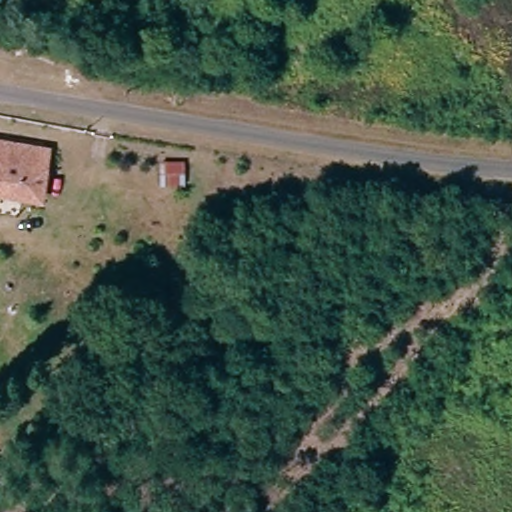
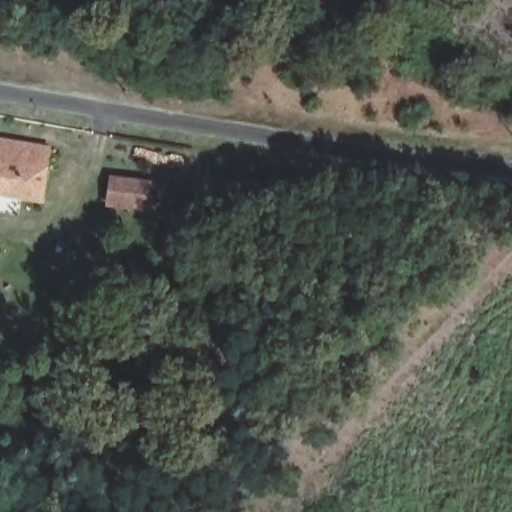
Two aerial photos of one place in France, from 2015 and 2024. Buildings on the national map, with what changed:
unchanged [(48,151),(40,200),(0,193),(0,143),(48,151)]
new [(107,205),(111,175),(155,180),(151,210),(107,205)]

